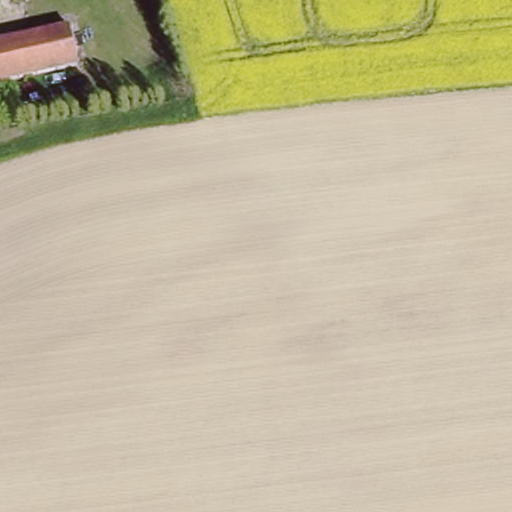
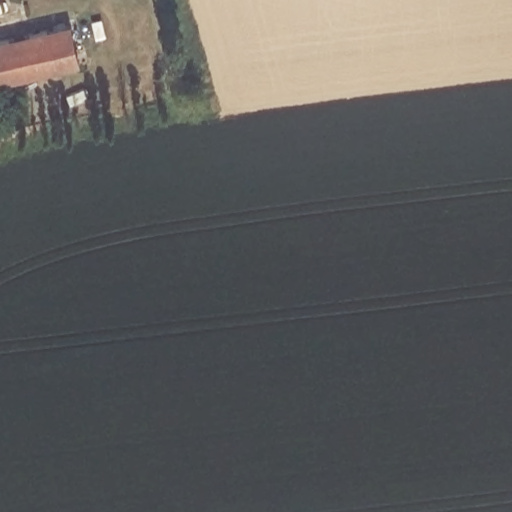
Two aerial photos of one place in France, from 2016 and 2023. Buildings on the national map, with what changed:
unchanged [(77,23),(87,62),(65,67),(0,82),(0,41),(55,28),(77,23)]

